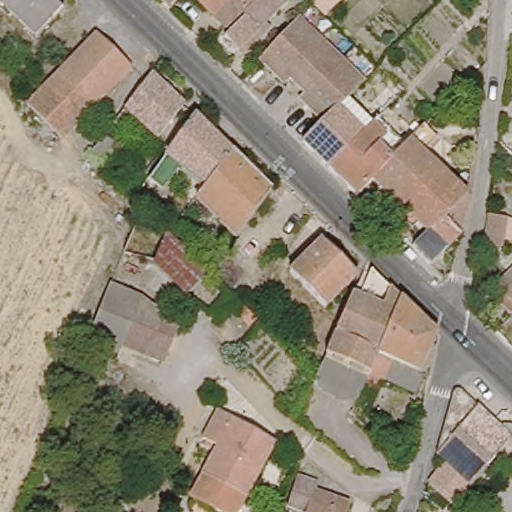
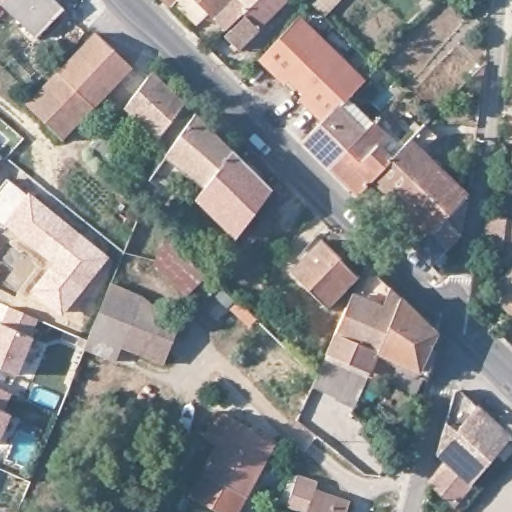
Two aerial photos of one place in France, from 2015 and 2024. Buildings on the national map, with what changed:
unchanged [(0,13),(0,0),(53,0),(63,10),(25,43),(0,13)]
unchanged [(167,15),(158,5),(164,0),(182,0),(167,15)]
unchanged [(224,33),(190,0),(245,0),(251,5),(224,33)]
unchanged [(238,57),(234,54),(223,42),(251,5),(257,0),(280,0),(284,4),(262,25),(266,29),(238,57)]
unchanged [(336,6),(329,0),(342,0),(336,6)]
unchanged [(323,122),(299,99),(304,95),(288,80),(284,84),(259,60),(298,19),(362,81),(337,107),(323,122)]
unchanged [(55,72),(85,41),(80,37),(88,29),(129,70),(91,106),(55,72)]
unchanged [(57,140),(23,105),(55,72),(91,106),(57,140)]
unchanged [(481,92),(472,87),(483,77),(481,92)]
unchanged [(149,85),(150,83),(181,115),(154,149),(121,120),(149,85)]
unchanged [(329,169),(303,144),(323,122),(337,107),(364,132),(329,169)]
unchanged [(173,171),(140,214),(138,212),(129,202),(196,116),(231,152),(199,195),(173,171)]
unchanged [(397,205),(374,184),(394,160),(427,126),(442,141),(427,156),(435,165),(397,205)]
unchanged [(374,184),(359,197),(329,169),(364,132),(394,160),(374,184)]
unchanged [(103,142),(114,152),(89,181),(78,173),(86,165),(103,142)]
unchanged [(231,152),(271,190),(233,239),(209,216),(199,227),(184,215),(199,195),(231,152)]
unchanged [(426,235),(397,205),(435,165),(446,175),(465,195),(426,235)]
new [(27,192),(56,214),(109,256),(61,315),(29,291),(49,263),(2,225),(27,192)]
unchanged [(470,199),(458,240),(432,269),(413,250),(426,235),(465,195),(470,199)]
unchanged [(490,227),(507,230),(503,260),(485,260),(490,227)]
unchanged [(204,268),(186,284),(157,255),(168,229),(204,268)]
unchanged [(324,309),(316,300),(291,273),(302,262),(296,256),(318,236),(323,241),(356,277),(324,309)]
unchanged [(349,296),(354,296),(366,266),(402,300),(384,342),(370,377),(326,357),(349,296)]
unchanged [(512,273),(512,310),(506,303),(494,291),(512,273)]
unchanged [(129,323),(100,311),(113,279),(133,287),(181,321),(164,361),(123,340),(129,323)]
unchanged [(386,382),(384,384),(370,377),(384,342),(402,300),(436,333),(438,335),(428,375),(423,374),(416,393),(386,382)]
new [(36,320),(28,337),(31,338),(15,375),(0,369),(0,324),(8,307),(36,320)]
unchanged [(368,385),(356,411),(314,390),(317,380),(326,357),(370,377),(368,385)]
new [(0,389),(11,395),(0,439),(0,389)]
unchanged [(510,447),(458,512),(455,512),(429,488),(446,471),(436,461),(454,405),(456,403),(456,402),(457,402),(458,401),(459,401),(460,401),(461,401),(462,401),(463,402),(464,402),(464,403),(478,416),(489,425),(502,438),(512,436),(512,449),(510,447)]
unchanged [(215,512),(189,497),(211,452),(196,445),(211,419),(269,451),(238,512),(215,512)]
unchanged [(345,510),(344,512),(282,512),(291,481),(299,486),(311,487),(309,497),(345,510)]

